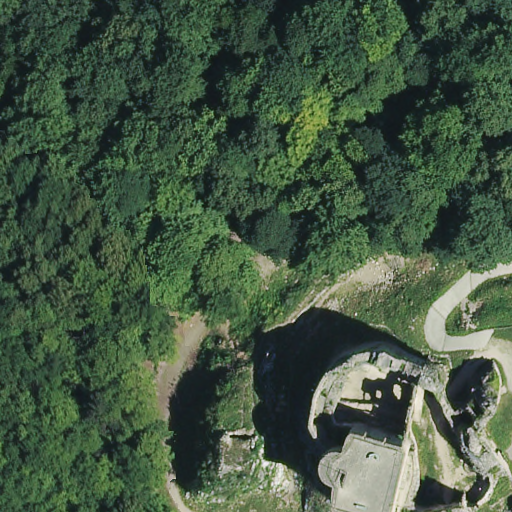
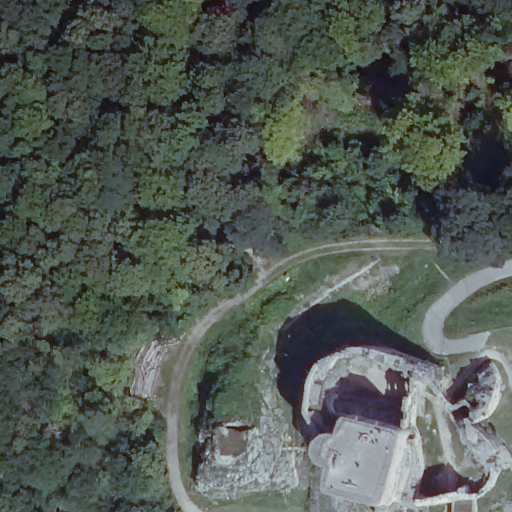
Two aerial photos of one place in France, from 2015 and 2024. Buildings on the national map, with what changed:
unchanged [(342,485),(364,448),(329,455),(320,418),(328,374),(356,352),(399,351),(444,387),(451,398),(462,397),(486,373),(512,392),(512,397),(490,416),(512,443),(512,512),(396,512),(400,503),(342,485)]

